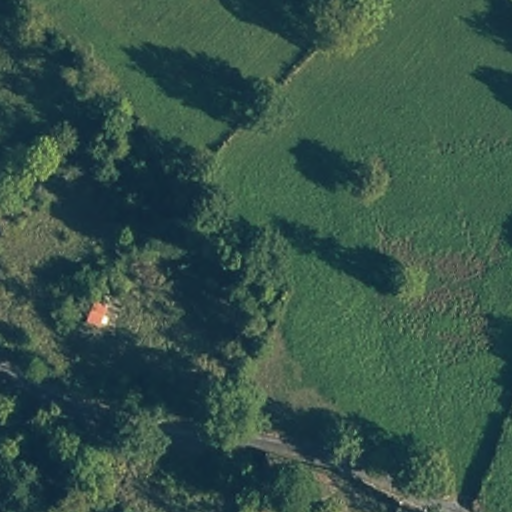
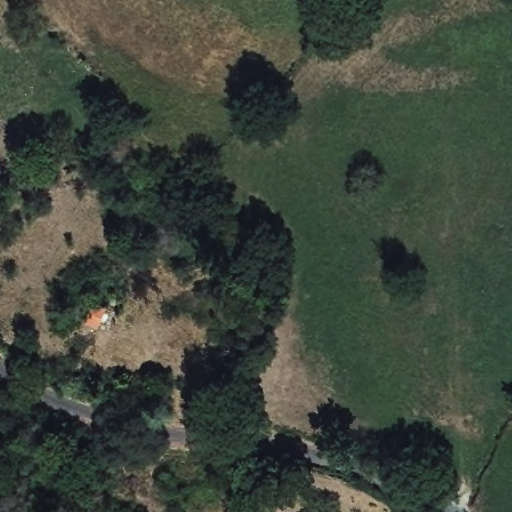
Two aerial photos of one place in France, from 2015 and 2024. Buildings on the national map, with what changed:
unchanged [(122,314),(114,334),(85,324),(94,302),(122,314)]

